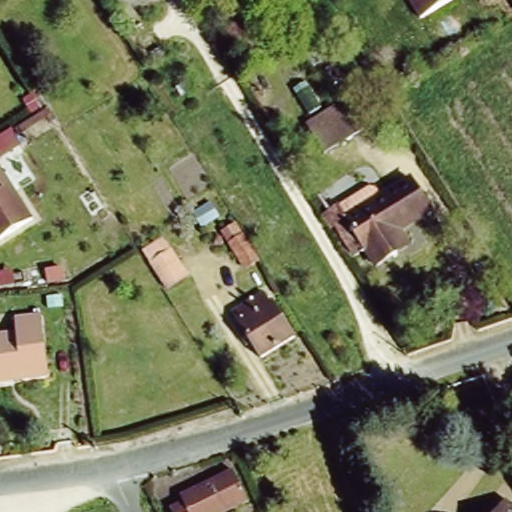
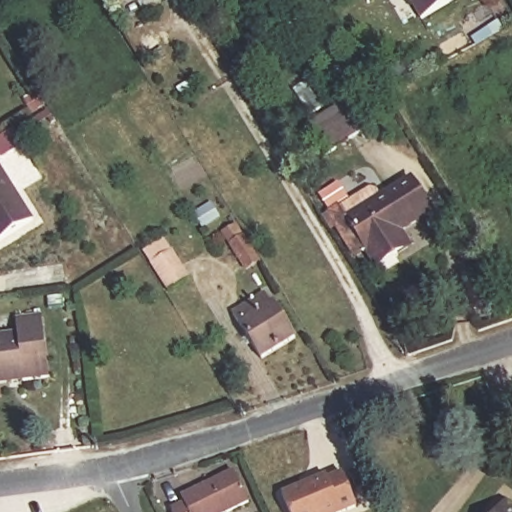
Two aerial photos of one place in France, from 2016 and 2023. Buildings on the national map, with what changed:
unchanged [(415,0),(454,0),(425,16),(415,0)]
unchanged [(304,126),(318,119),(357,97),(377,128),(337,150),(324,157),(304,126)]
unchanged [(0,241),(0,160),(35,217),(0,241)]
unchanged [(435,213),(414,224),(425,241),(371,271),(339,220),(413,178),(435,213)]
unchanged [(260,262),(260,263),(245,269),(230,244),(223,233),(230,228),(237,224),(260,262)]
unchanged [(143,250),(167,236),(193,278),(171,291),(143,250)]
unchanged [(266,290),(271,299),(275,297),(299,338),(263,357),(233,309),(266,290)]
unchanged [(19,315),(42,310),(48,369),(23,373),(0,378),(0,332),(20,328),(19,315)]
new [(282,493),(325,474),(327,477),(342,472),(357,507),(347,512),(289,512),(282,493)]
unchanged [(255,508),(245,512),(174,512),(188,506),(185,499),(239,477),(255,508)]
unchanged [(512,503),(512,512),(504,512),(512,503)]

